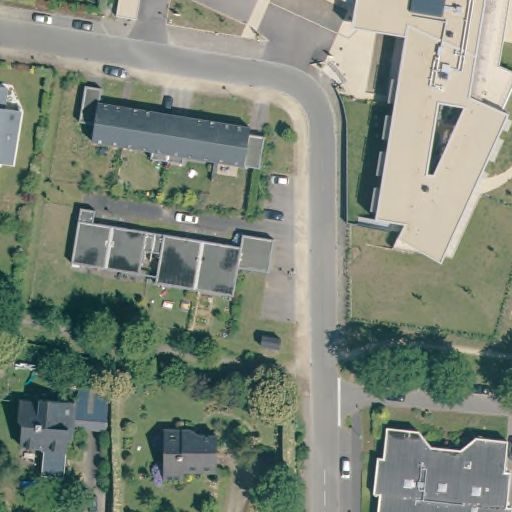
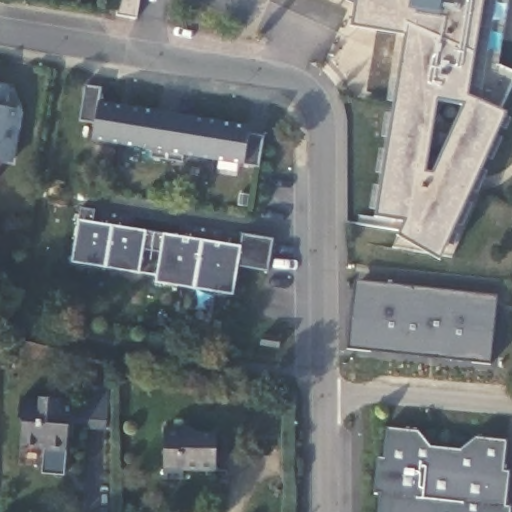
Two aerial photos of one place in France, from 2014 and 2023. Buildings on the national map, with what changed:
unchanged [(117,15),(120,0),(140,0),(136,19),(117,15)]
unchanged [(512,71),(512,84),(500,110),(507,112),(440,260),(398,235),(405,220),(375,215),(405,35),(352,27),(356,0),(509,0),(498,65),(512,71)]
unchanged [(5,84),(1,105),(17,107),(10,159),(0,157),(0,83),(5,84)]
unchanged [(105,86),(102,100),(252,125),(251,132),(266,135),(261,166),(256,166),(186,154),(185,161),(154,156),(154,149),(95,139),(97,121),(82,119),(89,84),(105,86)]
unchanged [(157,250),(140,248),(136,271),(69,260),(78,205),(93,207),(91,220),(237,245),(239,232),(270,237),(265,270),(235,265),(230,294),(152,281),(157,250)]
new [(352,297),(355,279),(362,280),(427,287),(452,290),(490,293),(498,294),(497,305),(491,364),(442,359),(423,357),(347,349),(352,297)]
unchanged [(275,346),(256,344),(258,333),(276,335),(275,346)]
unchanged [(85,375),(105,376),(100,427),(69,425),(70,400),(85,375)]
unchanged [(59,473),(37,471),(39,450),(35,445),(15,443),(17,421),(14,417),(14,397),(34,400),(35,396),(70,400),(69,425),(68,426),(63,430),(61,451),(59,473)]
unchanged [(381,491),(376,491),(381,455),(386,455),(390,425),(421,428),(433,443),(463,447),(479,435),(510,438),(507,468),(512,469),(512,477),(508,503),(512,504),(512,512),(379,512),(381,491)]
unchanged [(198,426),(206,430),(222,430),(222,467),(189,467),(189,476),(169,476),(170,426),(198,426)]

